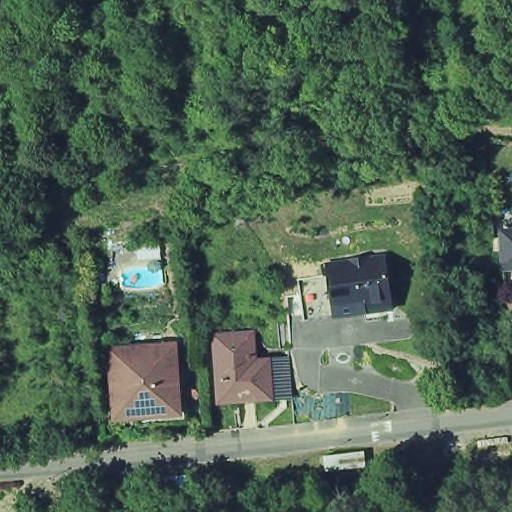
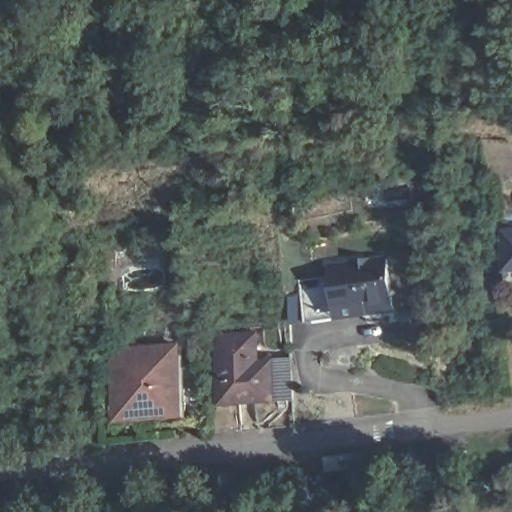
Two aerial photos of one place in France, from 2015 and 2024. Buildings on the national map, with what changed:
unchanged [(45,203),(45,186),(67,184),(68,202),(45,203)]
unchanged [(505,270),(503,232),(512,232),(512,285),(505,285),(505,270)]
unchanged [(327,263),(348,261),(347,256),(388,251),(395,308),(335,317),(327,263)]
unchanged [(293,396),(272,398),(268,398),(239,400),(240,403),(235,403),(228,333),(253,332),(255,360),(265,360),(270,360),(291,358),(293,396)]
unchanged [(220,403),(215,334),(228,333),(235,403),(220,403)]
unchanged [(177,410),(155,411),(112,414),(107,352),(172,347),(174,368),(177,410)]
unchanged [(155,411),(177,410),(174,368),(193,367),(198,413),(156,417),(155,411)]
unchanged [(364,452),(366,468),(327,472),(325,457),(364,452)]

